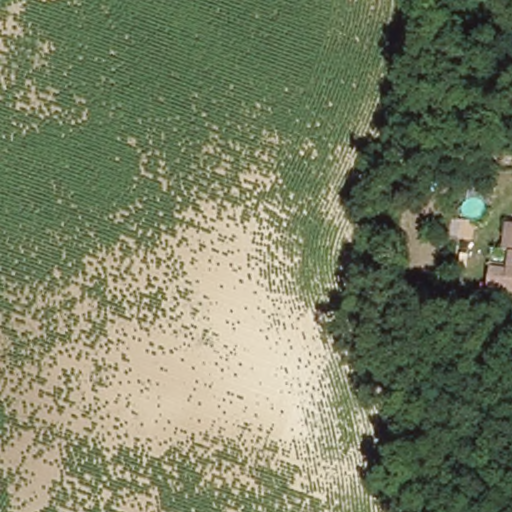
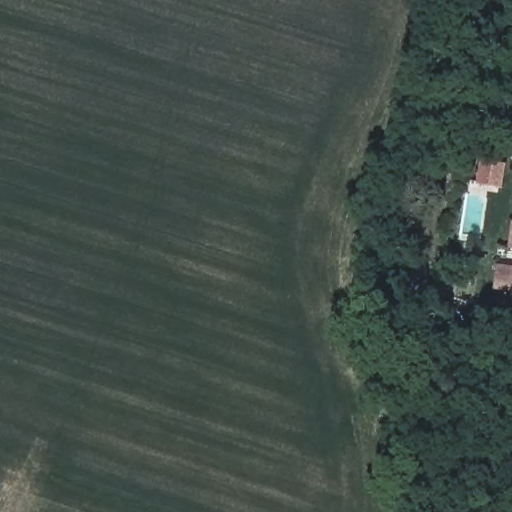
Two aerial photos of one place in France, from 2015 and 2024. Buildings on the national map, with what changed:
unchanged [(490,290),(492,266),(509,267),(511,250),(503,249),(506,221),(512,222),(512,292),(490,290)]

